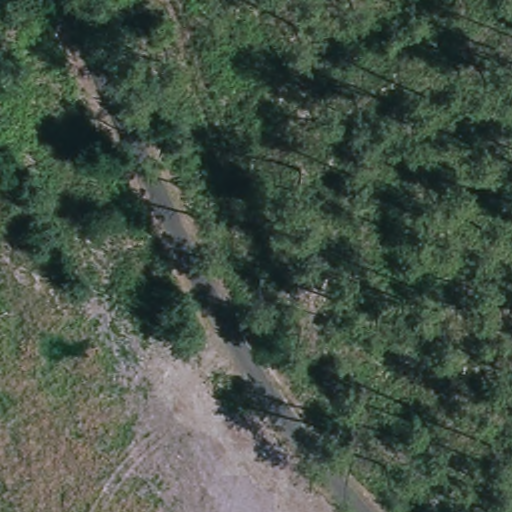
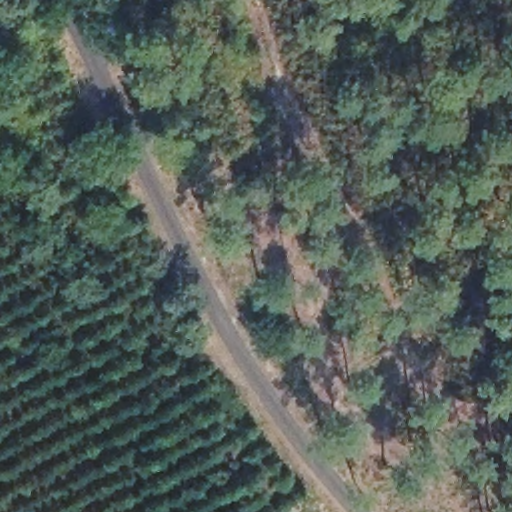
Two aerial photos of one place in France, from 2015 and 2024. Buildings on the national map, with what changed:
unchanged [(185,374),(179,380),(172,372),(178,367),(185,374)]

